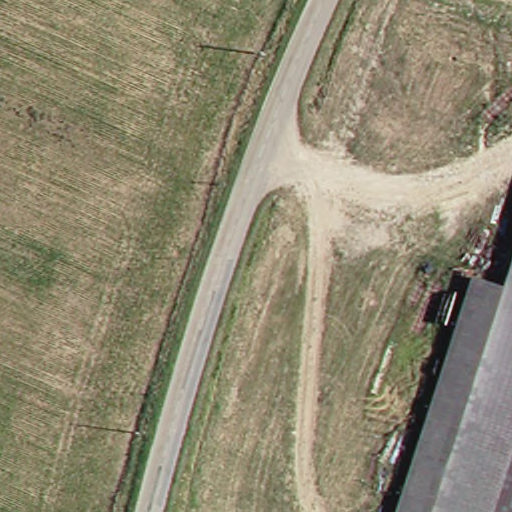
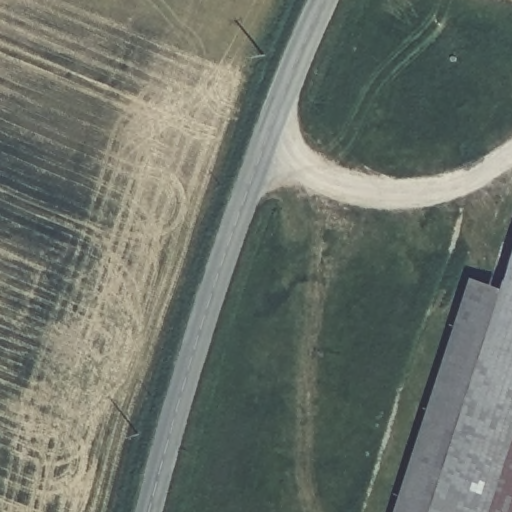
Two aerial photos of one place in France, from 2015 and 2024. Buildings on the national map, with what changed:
unchanged [(462,283),(506,294),(512,271),(512,512),(399,512),(424,422),(442,357),(462,283)]

